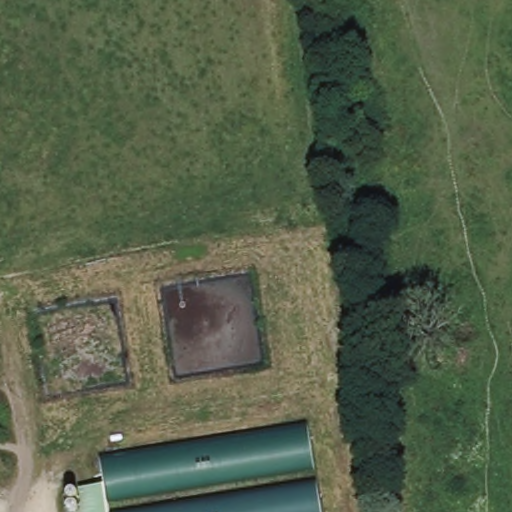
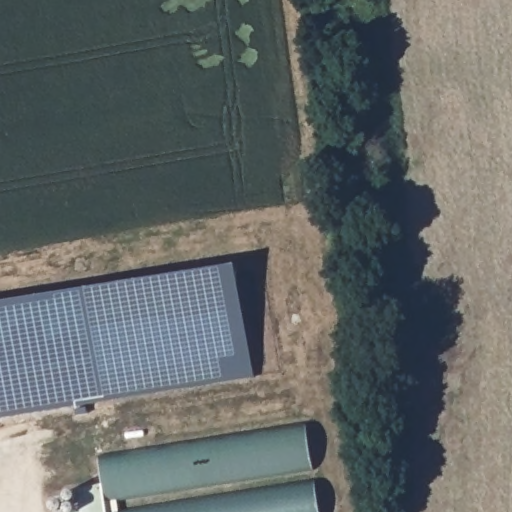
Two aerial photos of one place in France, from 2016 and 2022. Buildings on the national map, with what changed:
new [(239,265),(255,375),(0,417),(0,302),(239,265)]
unchanged [(103,477),(100,449),(310,428),(315,475),(106,495),(107,505),(316,485),(318,512),(81,512),(78,480),(103,477)]

